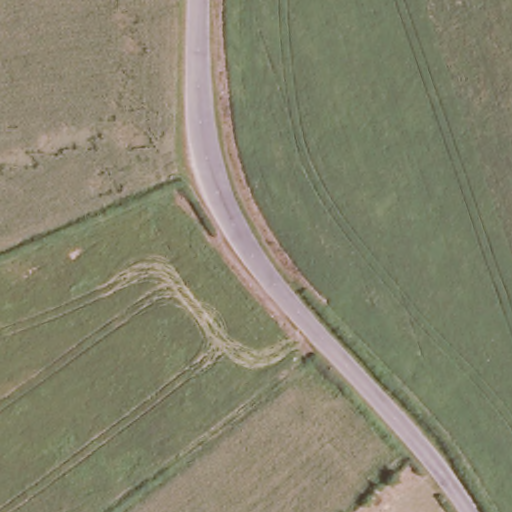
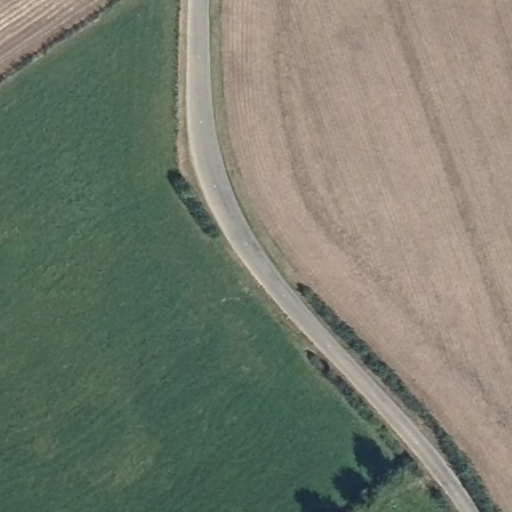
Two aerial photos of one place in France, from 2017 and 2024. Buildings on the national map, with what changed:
[]

